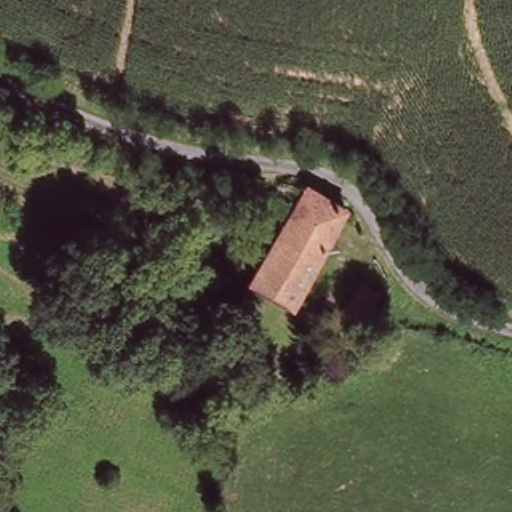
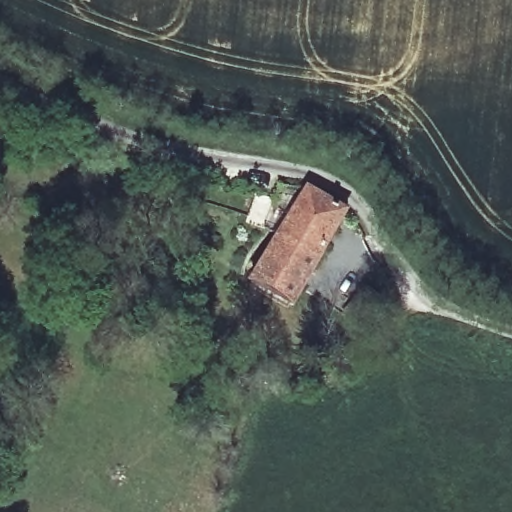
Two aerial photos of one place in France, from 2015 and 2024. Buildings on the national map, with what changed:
unchanged [(340,213),(295,306),(253,281),(299,189),(340,213)]
unchanged [(350,306),(369,274),(388,285),(369,318),(350,306)]

